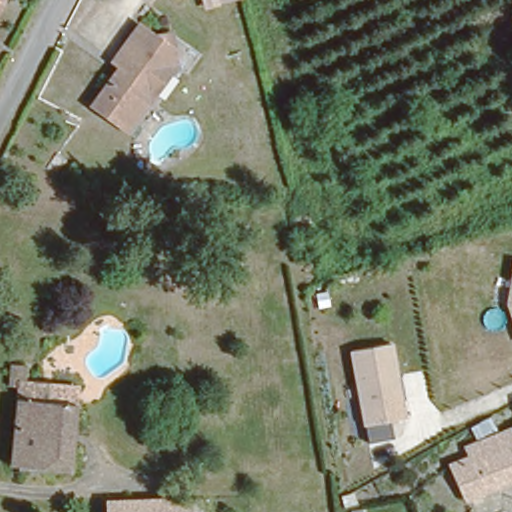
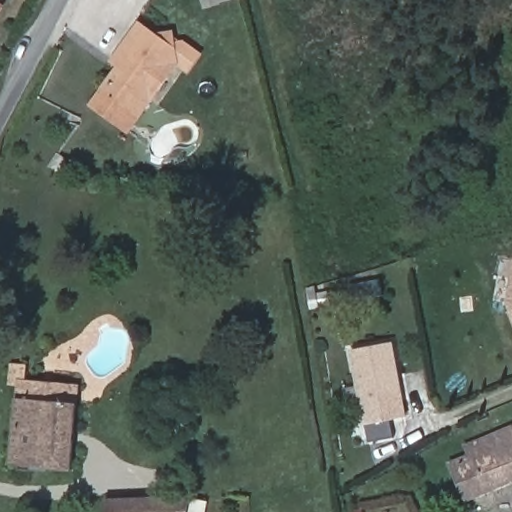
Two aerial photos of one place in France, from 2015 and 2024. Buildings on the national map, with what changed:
unchanged [(206,8),(204,0),(234,0),(206,8)]
unchanged [(0,4),(3,6),(0,10),(0,4)]
unchanged [(139,117),(104,92),(117,73),(122,75),(125,70),(114,63),(139,27),(157,40),(170,37),(174,67),(149,104),(139,117)]
unchanged [(508,307),(512,280),(512,317),(508,307)]
unchanged [(395,343),(407,418),(392,421),(395,438),(369,441),(351,351),(395,343)]
unchanged [(9,459),(17,377),(33,380),(74,383),(73,399),(68,465),(9,459)]
unchanged [(448,463),(470,455),(467,447),(497,435),(512,430),(512,480),(484,491),(463,500),(448,463)]
unchanged [(191,497),(186,512),(106,512),(106,496),(191,497)]

